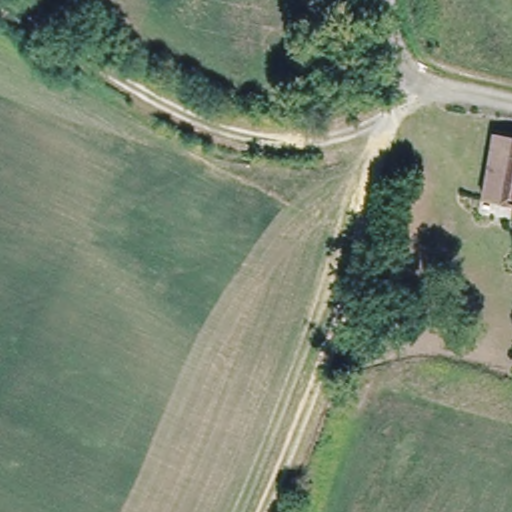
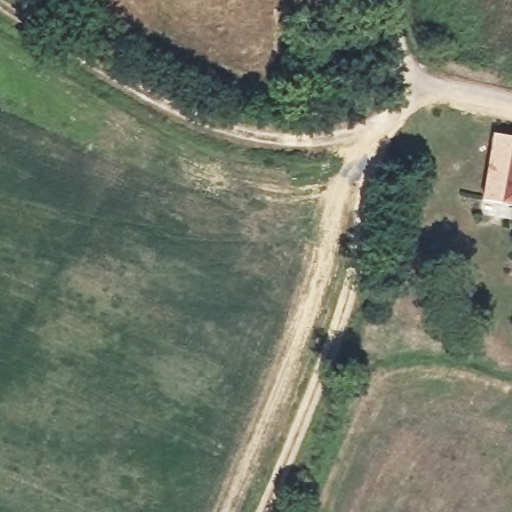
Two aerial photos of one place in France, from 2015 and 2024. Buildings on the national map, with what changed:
unchanged [(512,135),(512,203),(484,197),(497,132),(512,135)]

